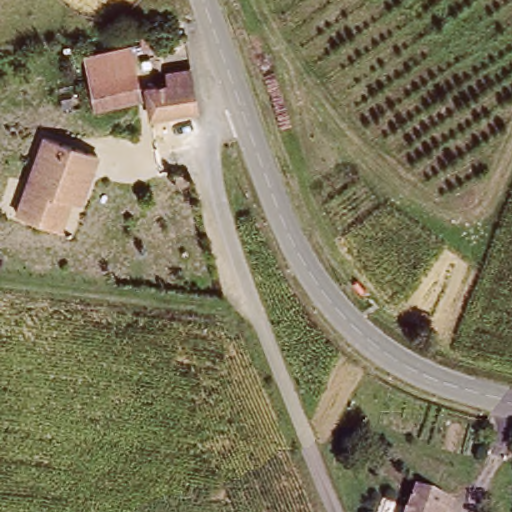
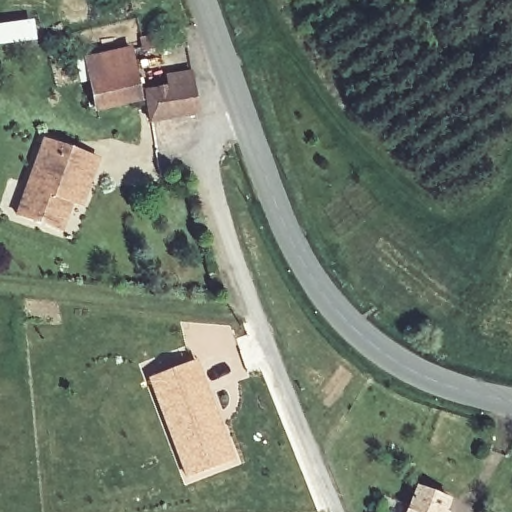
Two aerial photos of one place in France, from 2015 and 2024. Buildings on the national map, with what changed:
unchanged [(151,49),(138,49),(139,36),(151,36),(151,49)]
unchanged [(131,49),(138,96),(97,103),(90,56),(131,49)]
unchanged [(142,86),(172,81),(170,68),(188,64),(198,112),(148,122),(142,86)]
unchanged [(75,202),(64,231),(21,214),(50,139),(102,159),(95,179),(84,206),(75,202)]
new [(150,379),(198,360),(237,459),(187,478),(150,379)]
unchanged [(452,500),(448,512),(406,512),(415,489),(452,500)]

